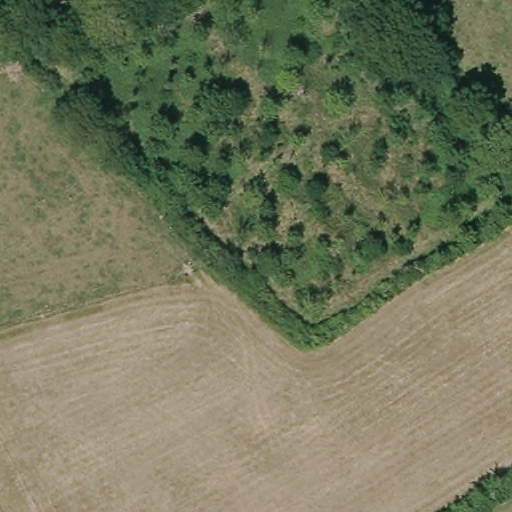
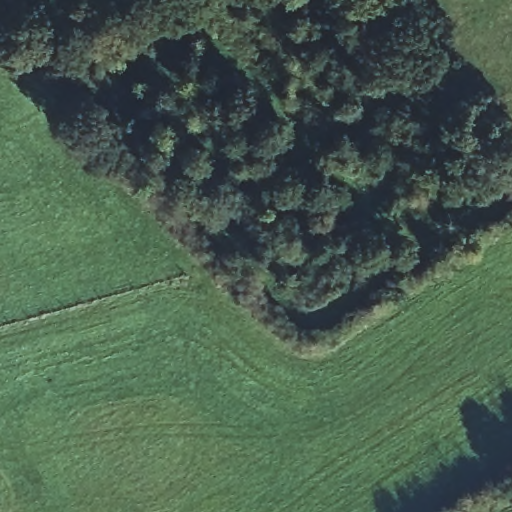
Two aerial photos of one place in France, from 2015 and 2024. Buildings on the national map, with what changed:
[]

